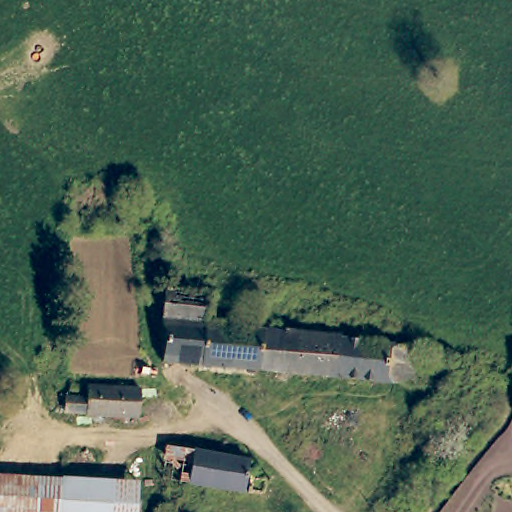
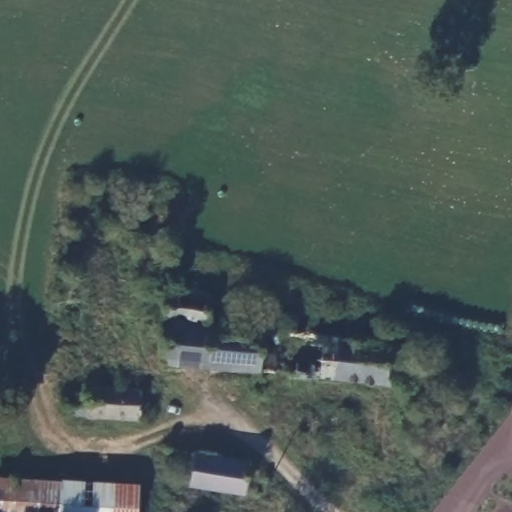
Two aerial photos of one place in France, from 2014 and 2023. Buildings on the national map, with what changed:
unchanged [(200,366),(161,362),(166,289),(205,292),(203,323),(200,366)]
unchanged [(262,328),(258,371),(200,366),(203,323),(262,328)]
unchanged [(339,335),(339,340),(417,347),(414,386),(258,371),(262,328),(339,335)]
unchanged [(52,395),(64,395),(88,397),(88,385),(139,388),(137,415),(63,411),(51,411),(52,395)]
unchanged [(215,489),(189,484),(165,480),(171,448),(195,452),(220,457),(251,463),(247,493),(215,489)]
unchanged [(47,480),(136,483),(135,512),(0,512),(0,477),(47,480)]
unchanged [(254,493),(256,478),(268,479),(270,482),(269,495),(254,493)]

